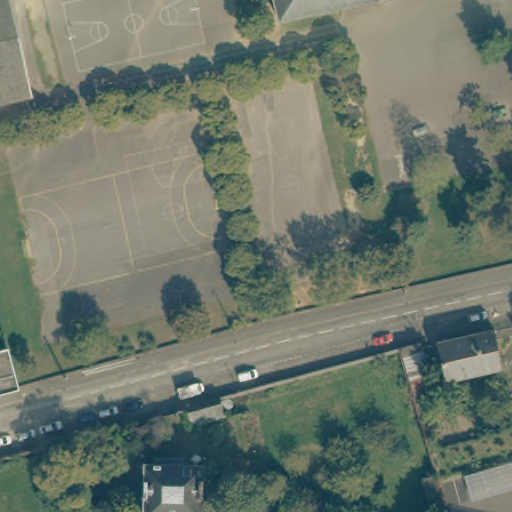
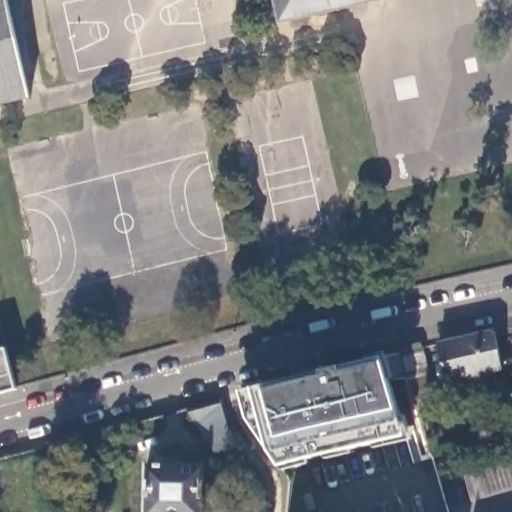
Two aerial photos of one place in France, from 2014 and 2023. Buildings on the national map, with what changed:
unchanged [(25,96),(0,101),(0,0),(2,0),(25,96)]
unchanged [(297,17),(297,18),(276,23),(269,0),(370,0),(297,17)]
unchanged [(449,377),(440,340),(495,328),(502,366),(449,377)]
unchanged [(442,401),(420,407),(417,396),(411,378),(410,379),(400,345),(422,340),(422,344),(436,395),(441,394),(442,401)]
unchanged [(2,343),(12,385),(0,388),(0,343),(2,343)]
new [(277,467),(269,448),(247,419),(241,392),(266,390),(383,360),(399,417),(404,435),(277,467)]
unchanged [(194,424),(189,408),(221,399),(224,415),(194,424)]
new [(215,455),(200,422),(211,419),(224,415),(241,447),(215,455)]
unchanged [(164,461),(165,454),(179,455),(179,461),(201,462),(199,512),(143,512),(144,460),(164,461)]
new [(464,477),(512,462),(512,491),(472,504),(464,477)]
demolished [(449,512),(432,512),(423,482),(438,477),(449,512)]

